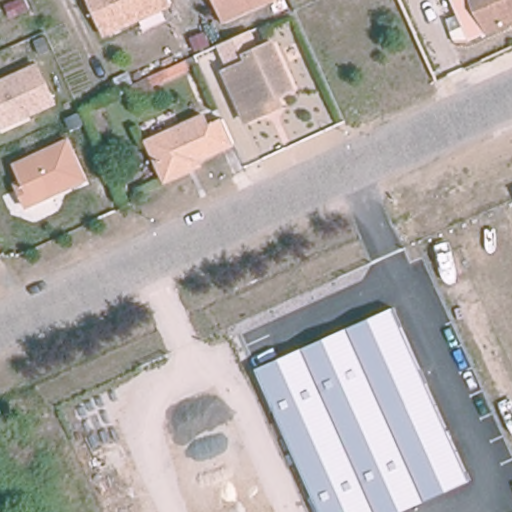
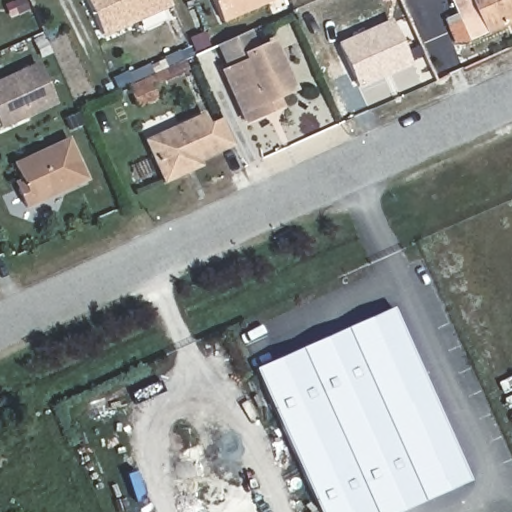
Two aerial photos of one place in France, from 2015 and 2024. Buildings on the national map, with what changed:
unchanged [(88,0),(168,0),(170,4),(103,34),(88,0)]
unchanged [(216,0),(270,0),(225,20),(216,0)]
unchanged [(450,0),(512,0),(512,20),(467,40),(450,0)]
new [(391,19),(412,65),(358,90),(336,43),(391,19)]
unchanged [(263,106),(250,111),(228,61),(253,50),(250,45),(268,37),(289,84),(272,91),(275,100),(263,106)]
unchanged [(4,127),(0,118),(0,80),(40,64),(59,105),(4,127)]
unchanged [(191,176),(166,187),(147,144),(205,119),(210,129),(226,123),(237,148),(200,164),(203,170),(191,176)]
unchanged [(71,138),(90,182),(26,209),(15,184),(22,179),(15,164),(71,138)]
unchanged [(402,512),(320,512),(255,368),(396,308),(473,481),(402,512)]

